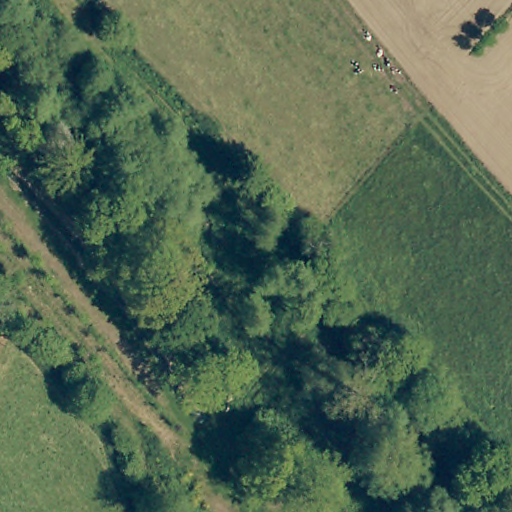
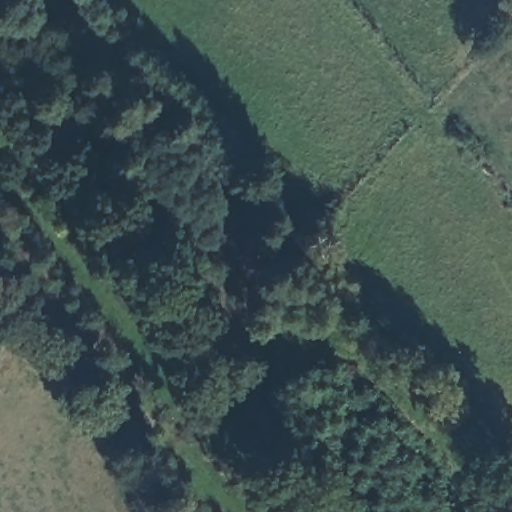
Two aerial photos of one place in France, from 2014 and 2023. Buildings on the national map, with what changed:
[]

